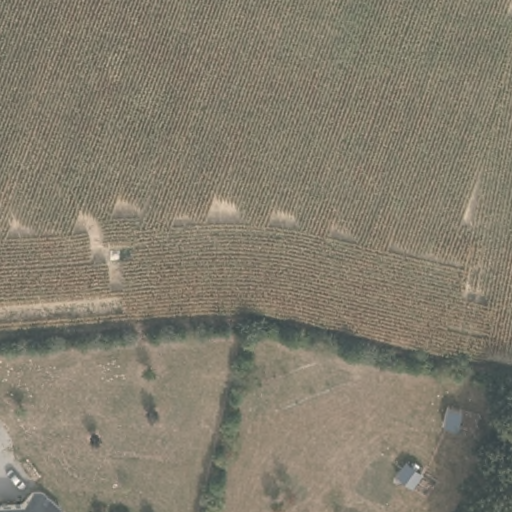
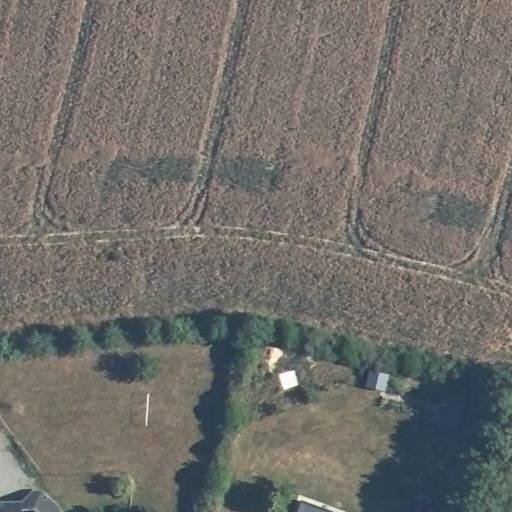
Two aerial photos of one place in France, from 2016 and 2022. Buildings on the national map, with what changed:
unchanged [(25,506),(36,494),(45,494),(62,512),(0,512),(0,506),(25,506)]
new [(302,501),(333,512),(298,512),(302,501)]

